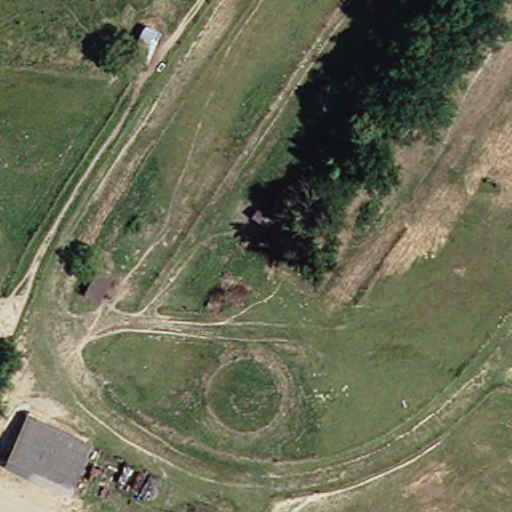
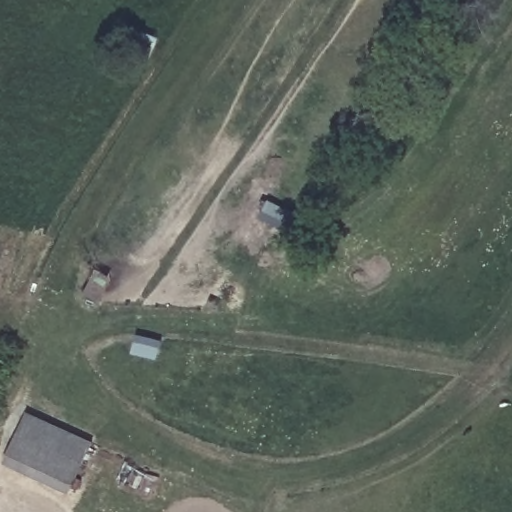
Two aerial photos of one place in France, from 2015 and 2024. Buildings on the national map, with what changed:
unchanged [(30,416),(93,441),(72,492),(8,462),(30,416)]

